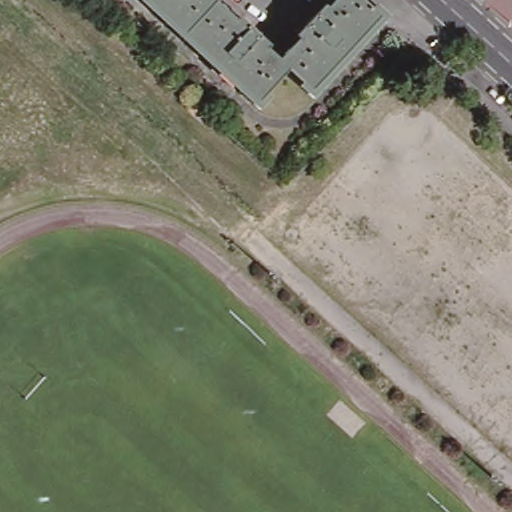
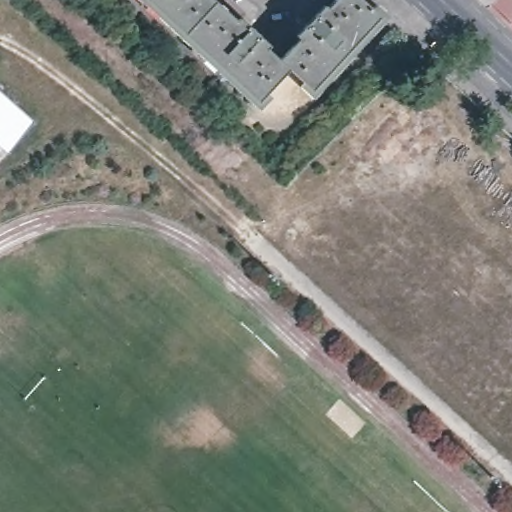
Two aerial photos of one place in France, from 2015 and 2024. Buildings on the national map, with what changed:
unchanged [(243,18),(273,45),(271,48),(282,59),(301,39),(298,36),(325,5),(329,8),(336,0),(364,0),(382,17),(314,90),(290,69),(261,101),(151,0),(218,0),(241,20),(243,18)]
new [(8,153),(0,146),(0,91),(34,119),(8,153)]

